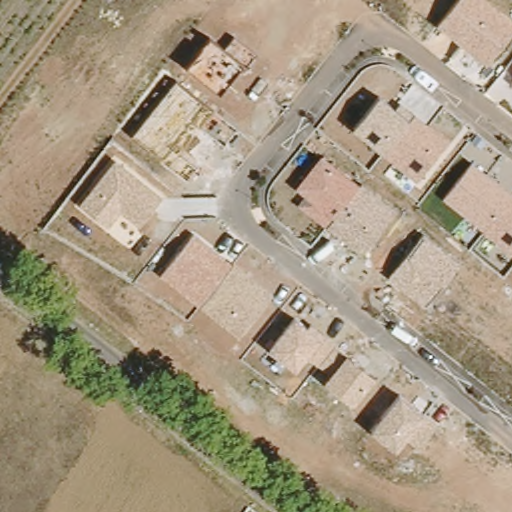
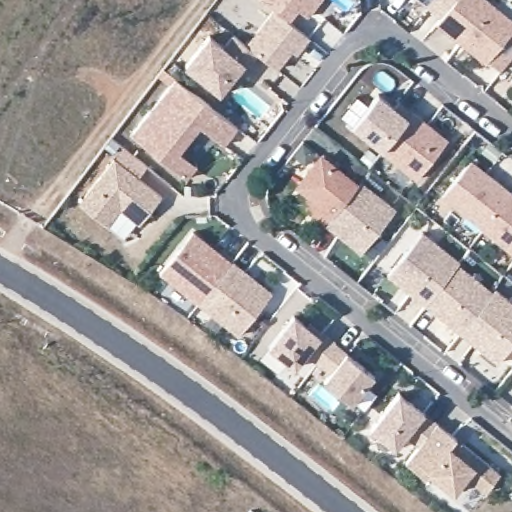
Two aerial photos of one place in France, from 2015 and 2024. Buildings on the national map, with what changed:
new [(299,10),(290,21),(310,37),(296,55),(291,50),(276,69),(257,52),(246,67),(243,64),(220,93),(185,65),(208,34),(222,45),(231,34),(246,44),(273,7),(264,0),(321,0),(308,17),(299,10)]
new [(419,0),(453,0),(440,16),(419,0)]
unchanged [(491,0),(512,17),(512,27),(486,60),(436,21),(453,0),(491,0)]
new [(238,126),(225,145),(201,126),(180,150),(198,164),(188,176),(131,132),(175,77),(238,126)]
unchanged [(512,78),(512,81),(511,80),(512,78)]
unchanged [(378,92),(396,107),(402,101),(448,139),(416,180),(380,151),(381,150),(352,125),(378,92)]
unchanged [(321,152),(358,182),(360,180),(396,208),(361,252),(298,203),(306,194),(295,185),(321,152)]
unchanged [(79,202),(116,157),(162,196),(140,224),(121,209),(107,225),(79,202)]
unchanged [(471,159),(512,192),(512,252),(442,196),(471,159)]
unchanged [(423,230),(459,260),(424,303),(388,275),(423,230)]
unchanged [(193,231),(271,291),(238,333),(160,273),(193,231)]
new [(497,363),(424,303),(457,263),(494,292),(496,290),(512,301),(512,343),(497,363)]
unchanged [(294,313),(310,326),(314,322),(348,351),(376,374),(353,401),(323,379),(326,375),(303,356),(295,366),(268,346),(294,313)]
unchanged [(400,392),(423,411),(436,421),(418,445),(405,435),(394,447),(371,426),(400,392)]
new [(501,472),(486,491),(466,476),(454,492),(427,473),(424,477),(406,463),(418,445),(436,421),(501,472)]

